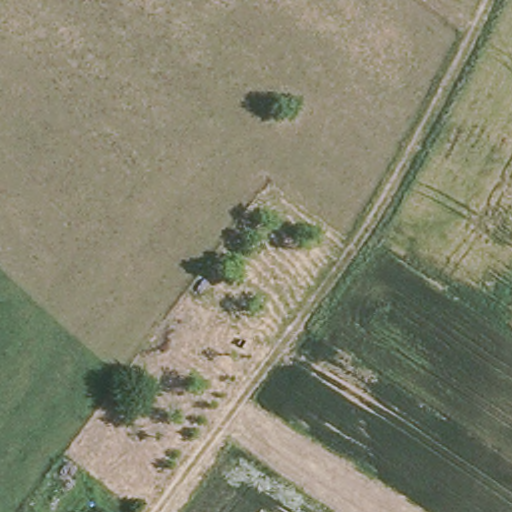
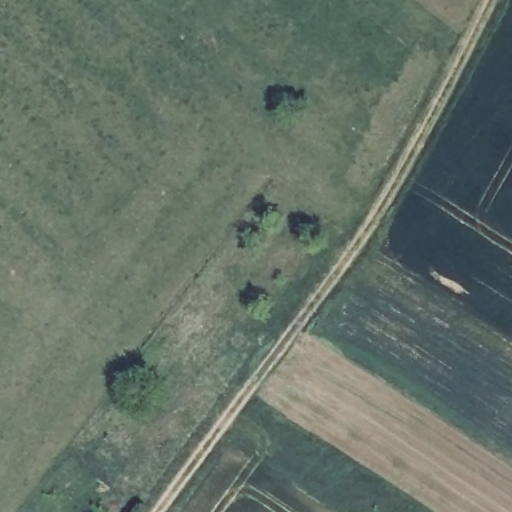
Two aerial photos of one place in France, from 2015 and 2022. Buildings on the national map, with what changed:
unchanged [(158,368),(145,359),(168,327),(181,335),(158,368)]

